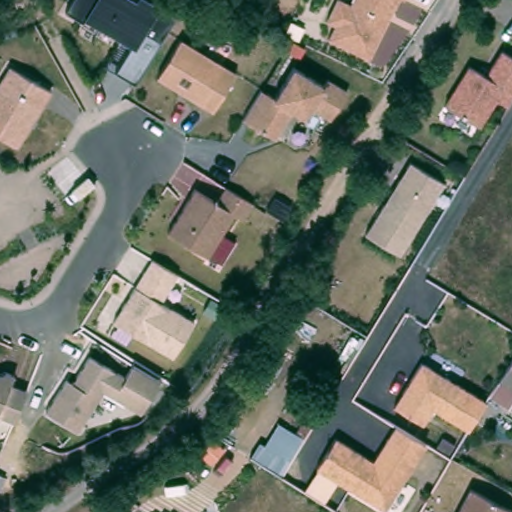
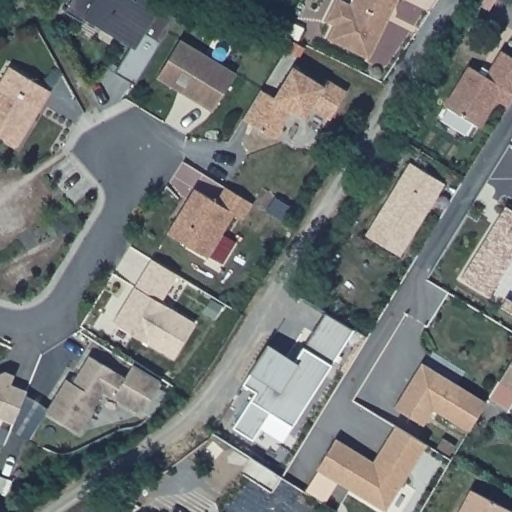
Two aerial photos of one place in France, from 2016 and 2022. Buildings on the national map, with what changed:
unchanged [(144,31),(134,47),(84,18),(64,8),(69,0),(151,0),(175,16),(161,42),(144,31)]
unchanged [(328,37),(334,24),(324,20),(335,0),(346,0),(350,2),(351,0),(402,0),(400,5),(395,2),(369,57),(328,37)]
unchanged [(155,76),(180,37),(235,72),(211,111),(155,76)]
unchanged [(512,90),(511,92),(501,86),(479,118),(445,103),(469,67),(486,75),(501,48),(512,55),(512,90)]
unchanged [(54,91),(20,147),(0,135),(0,84),(12,65),(54,91)]
unchanged [(244,118),(262,88),(275,94),(292,66),(321,84),(325,78),(346,90),(330,118),(309,107),(304,116),(291,108),(274,137),(244,118)]
unchanged [(364,233),(409,161),(443,182),(400,255),(364,233)]
unchanged [(216,201),(230,185),(255,202),(245,217),(235,212),(208,257),(170,230),(196,186),(216,201)]
new [(462,276),(505,205),(512,211),(512,253),(490,294),(462,276)]
unchanged [(180,274),(164,301),(196,323),(176,356),(115,319),(152,255),(180,274)]
new [(258,394),(245,387),(268,346),(295,362),(325,312),(353,328),(295,428),(273,415),(257,443),(236,431),(258,394)]
unchanged [(66,377),(72,381),(89,356),(123,376),(131,364),(160,382),(140,414),(102,391),(76,431),(44,412),(66,377)]
unchanged [(425,358),(485,398),(469,426),(435,407),(423,425),(393,403),(425,358)]
unchanged [(512,384),(500,376),(512,358),(512,384)]
unchanged [(14,373),(10,380),(26,388),(13,418),(0,413),(0,414),(0,369),(14,373)]
unchanged [(374,455),(395,424),(425,445),(386,506),(316,465),(337,436),(374,455)]
new [(317,467),(336,479),(322,501),(304,489),(317,467)]
unchanged [(511,512),(456,512),(467,489),(511,512)]

